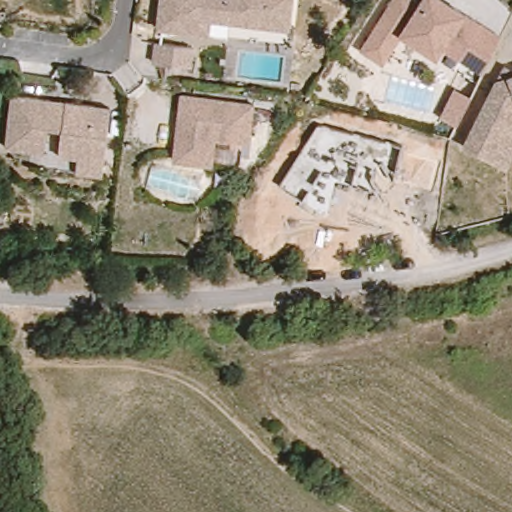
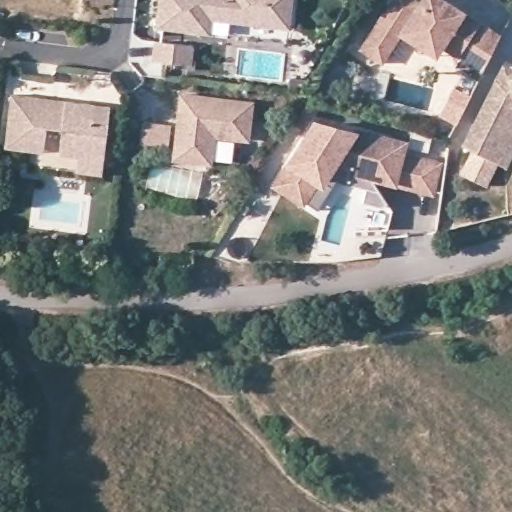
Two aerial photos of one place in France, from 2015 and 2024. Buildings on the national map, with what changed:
unchanged [(213,17),(211,32),(161,25),(164,0),(297,0),(292,30),(277,27),(213,17)]
unchanged [(419,0),(443,0),(464,16),(496,38),(479,77),(442,51),(435,60),(399,36),(381,66),(354,49),(388,0),(416,0),(419,1),(419,0)]
unchanged [(194,44),(191,64),(155,59),(158,39),(194,44)]
unchanged [(494,76),(504,78),(512,75),(512,151),(504,168),(459,148),(494,76)]
unchanged [(264,98),(258,136),(223,131),(219,157),(181,152),(191,87),(264,98)]
unchanged [(8,144),(9,134),(15,92),(113,107),(103,174),(77,170),(79,155),(60,152),(64,127),(49,125),(46,140),(45,150),(8,144)]
new [(456,92),(473,100),(460,128),(444,120),(456,92)]
new [(314,120),(409,140),(406,153),(442,161),(434,197),(373,181),(388,203),(383,207),(364,201),(367,188),(338,180),(319,210),(308,202),(304,206),(273,185),(306,132),(294,124),(301,112),(314,120)]
new [(144,134),(171,136),(168,156),(142,153),(144,134)]

